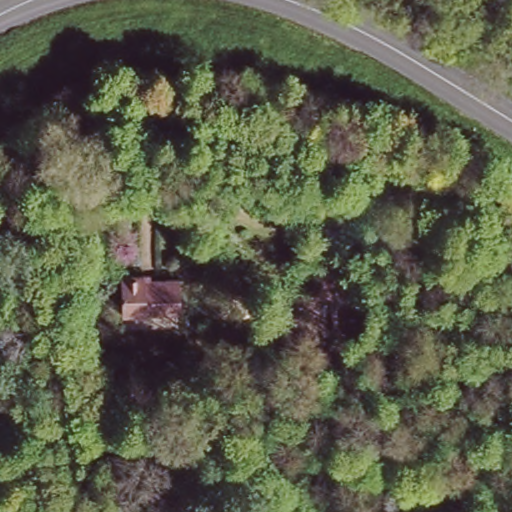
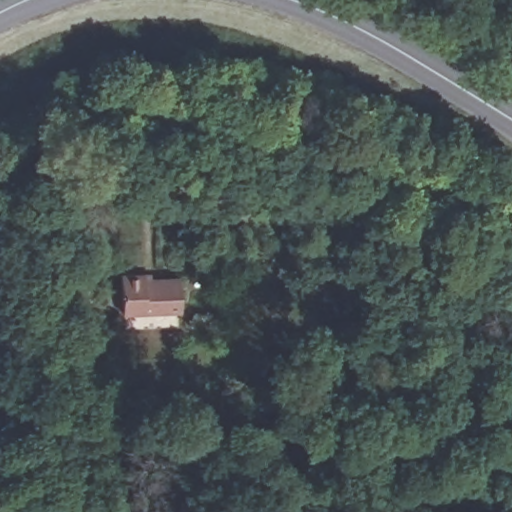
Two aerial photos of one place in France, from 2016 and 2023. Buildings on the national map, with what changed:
unchanged [(118,265),(142,265),(142,273),(176,274),(175,307),(117,306),(118,265)]

